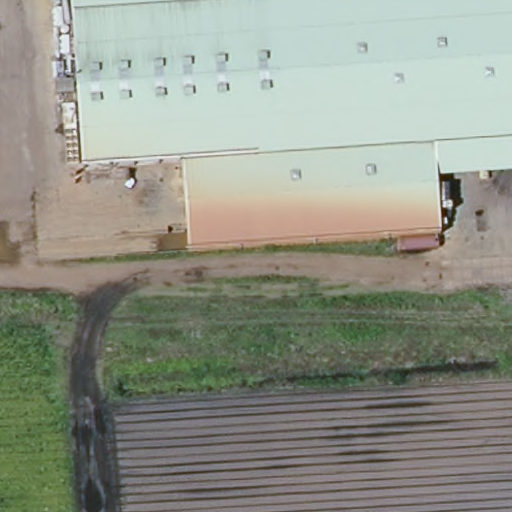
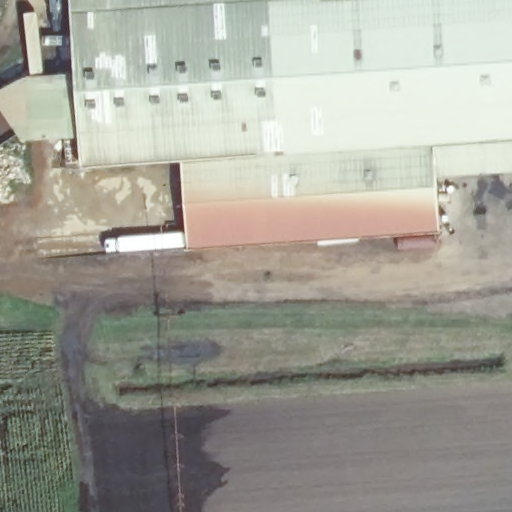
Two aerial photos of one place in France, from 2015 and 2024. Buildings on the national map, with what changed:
unchanged [(441,179),(441,231),(189,247),(182,159),(81,167),(70,0),(512,0),(512,174),(441,179)]
new [(40,79),(75,76),(79,136),(32,140),(23,141),(0,107),(0,90),(27,75),(40,74),(40,79)]

